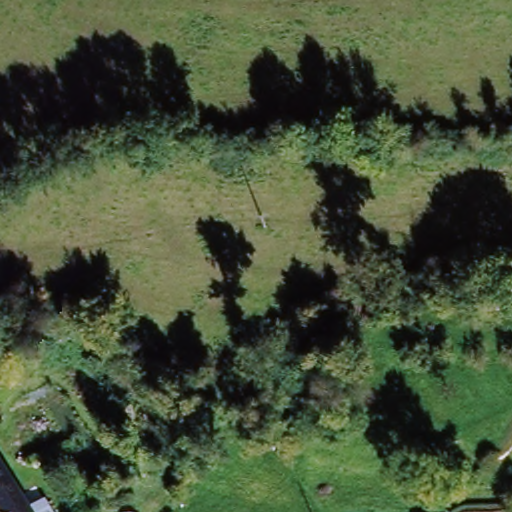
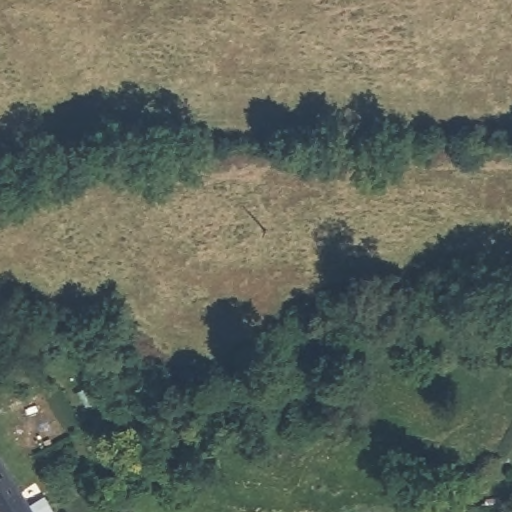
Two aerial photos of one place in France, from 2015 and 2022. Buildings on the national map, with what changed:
unchanged [(27,512),(0,512),(0,462),(27,512)]

